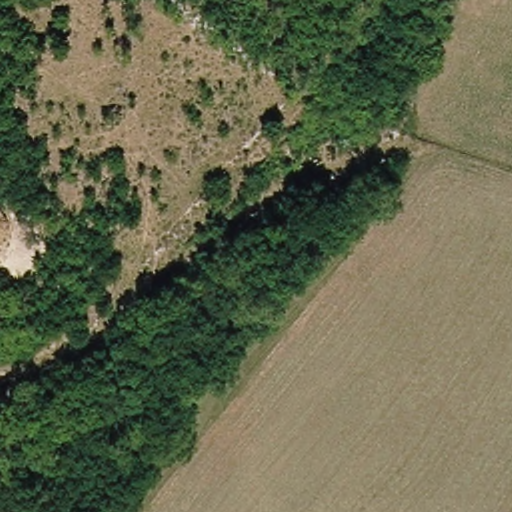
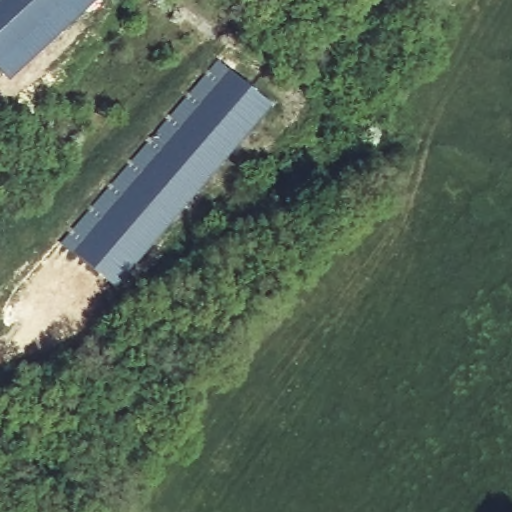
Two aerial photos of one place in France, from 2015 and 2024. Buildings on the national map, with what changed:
new [(3,0),(69,0),(2,64),(0,62),(0,3),(3,0)]
new [(72,253),(232,69),(275,106),(116,291),(72,253)]

